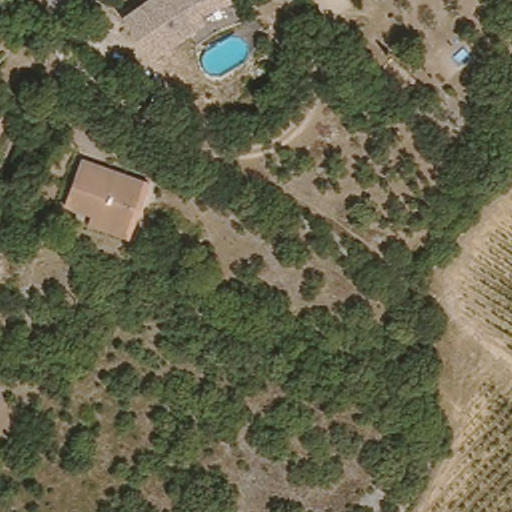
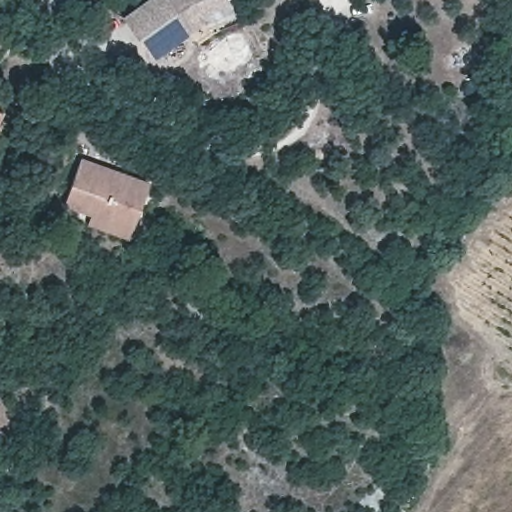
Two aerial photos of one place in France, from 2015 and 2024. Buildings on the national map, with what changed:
unchanged [(137,0),(141,0),(147,7),(155,0),(208,0),(210,3),(180,17),(184,26),(133,67),(102,28),(137,0)]
unchanged [(2,113),(0,116),(0,112),(2,113)]
unchanged [(89,226),(93,215),(67,204),(85,161),(146,186),(131,227),(125,239),(89,226)]

